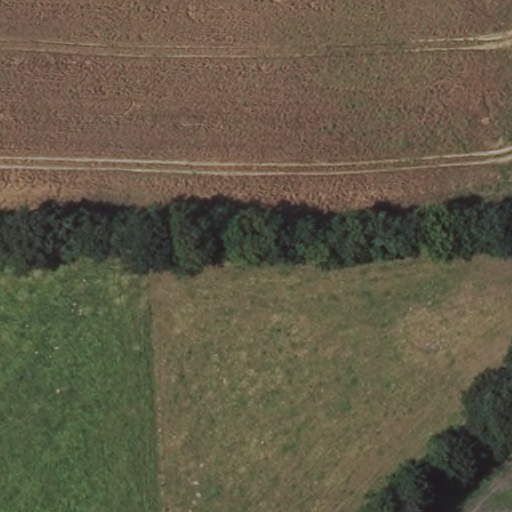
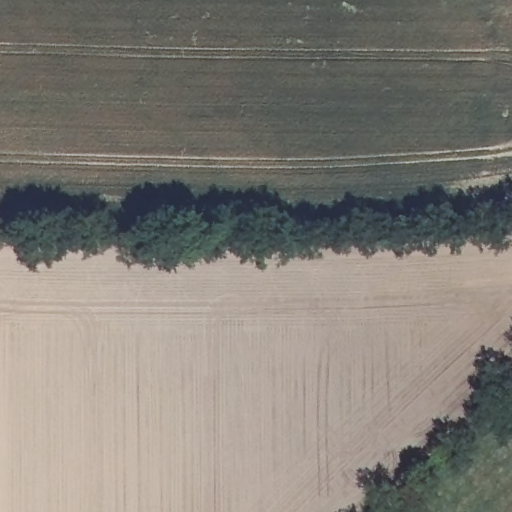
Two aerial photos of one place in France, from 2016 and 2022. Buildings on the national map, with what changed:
[]

